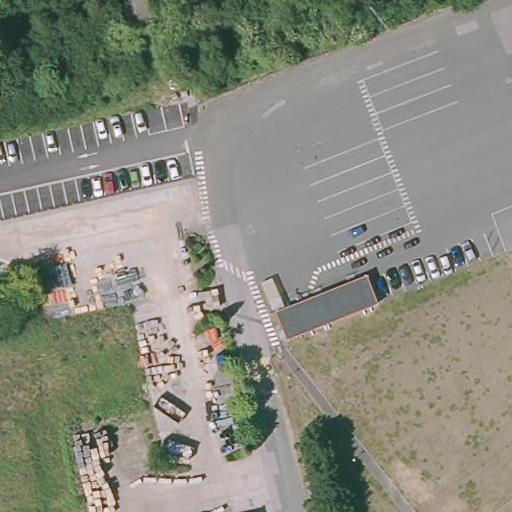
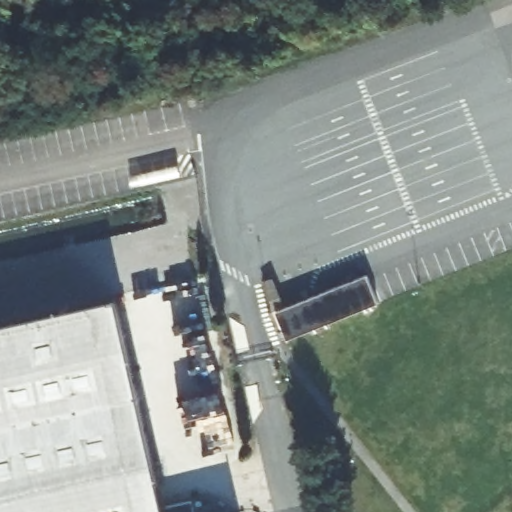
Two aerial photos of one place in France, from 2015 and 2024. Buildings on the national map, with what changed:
unchanged [(367,274),(378,303),(288,339),(276,309),(367,274)]
new [(176,512),(0,512),(0,315),(121,289),(176,512)]

